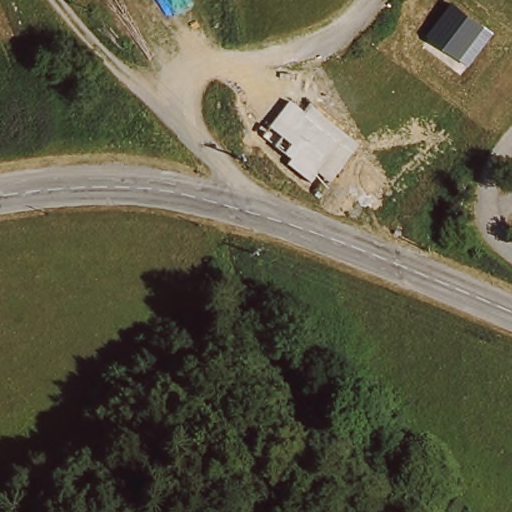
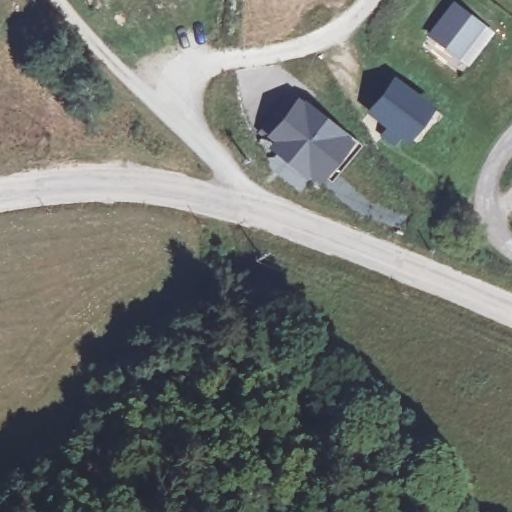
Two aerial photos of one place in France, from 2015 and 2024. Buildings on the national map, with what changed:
unchanged [(468,62),(458,54),(430,33),(452,3),(480,24),(491,32),(468,62)]
new [(386,128),(366,112),(394,76),(436,108),(407,145),(400,139),(394,146),(380,136),(386,128)]
unchanged [(332,184),(318,174),(312,182),(289,164),(292,159),(263,135),(290,101),(305,112),(311,104),(361,147),(332,184)]

